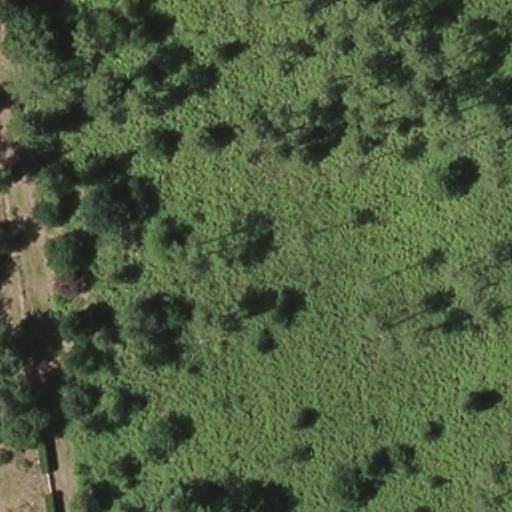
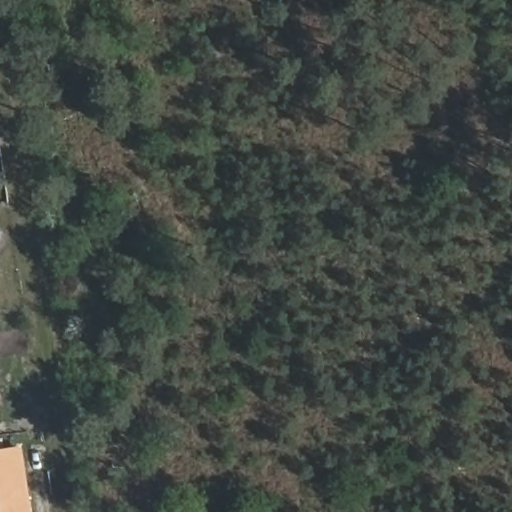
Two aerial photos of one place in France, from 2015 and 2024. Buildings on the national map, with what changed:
new [(24,445),(34,512),(0,512),(0,448),(24,445)]

